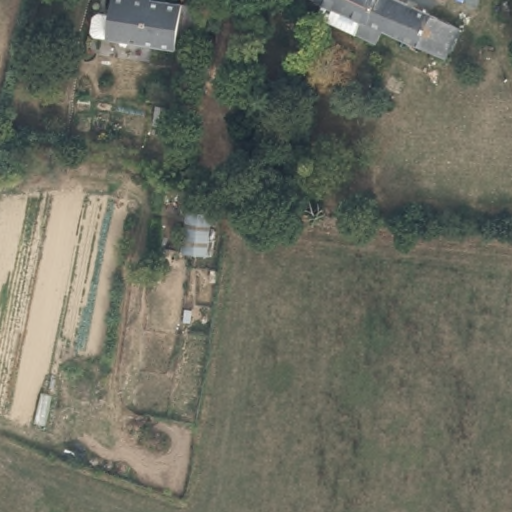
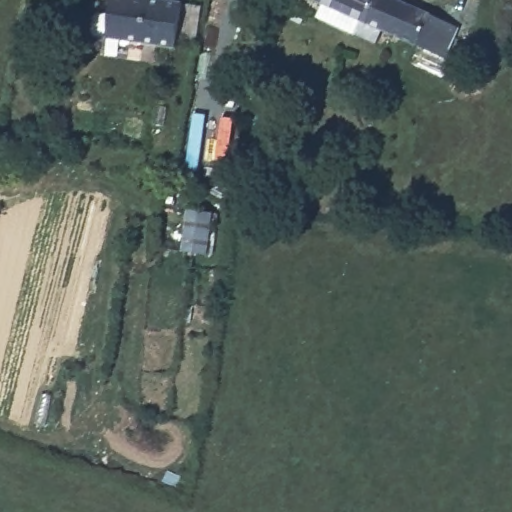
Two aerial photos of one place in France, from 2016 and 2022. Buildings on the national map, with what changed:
unchanged [(178,45),(110,36),(96,29),(96,19),(100,11),(113,11),(115,0),(170,0),(184,2),(178,45)]
unchanged [(442,51),(396,29),(378,34),(365,28),(357,23),(323,5),(325,0),(417,0),(459,19),(464,21),(454,61),(442,51)]
unchanged [(209,253),(186,251),(190,210),(214,212),(209,253)]

